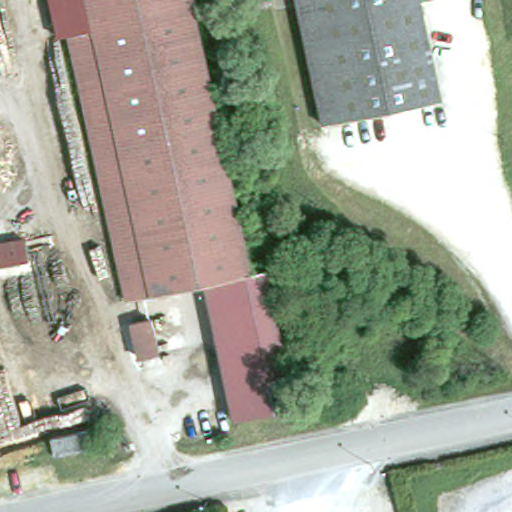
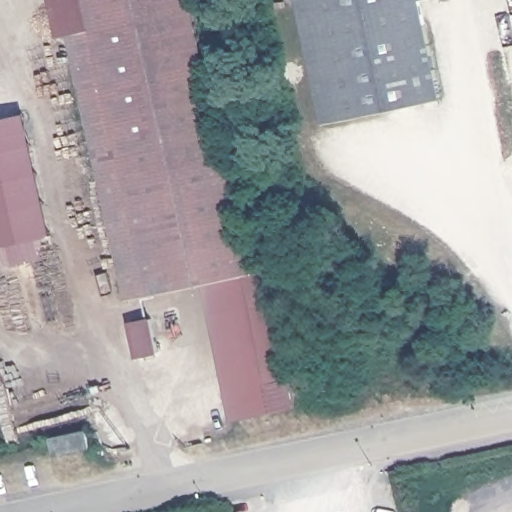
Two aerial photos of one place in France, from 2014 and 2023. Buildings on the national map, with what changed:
unchanged [(225,286),(207,289),(128,306),(70,39),(54,44),(46,0),(194,0),(254,279),(240,282),(225,286)]
unchanged [(325,125),(298,0),(424,0),(445,99),(325,125)]
new [(47,236),(42,259),(11,266),(0,251),(0,119),(26,114),(52,235),(47,236)]
unchanged [(240,282),(254,279),(270,276),(291,383),(297,412),(243,424),(236,426),(207,289),(225,286),(240,282)]
unchanged [(133,327),(154,323),(154,320),(155,316),(158,311),(162,308),(167,307),(168,307),(174,307),(179,310),(183,313),(186,321),(186,324),(185,329),(182,333),(178,337),(173,339),(168,340),(163,338),(158,336),(155,332),(161,358),(140,362),(133,327)]
unchanged [(52,437),(74,432),(89,429),(93,447),(78,451),(56,456),(52,437)]

